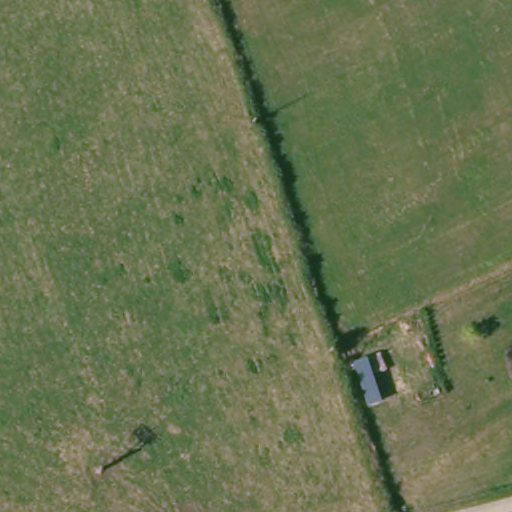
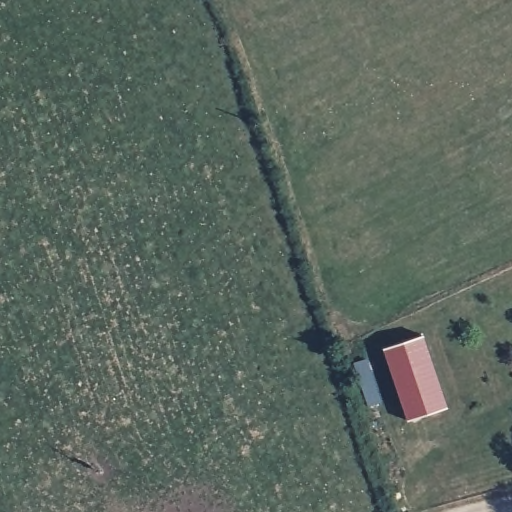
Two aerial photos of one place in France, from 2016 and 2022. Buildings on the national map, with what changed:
new [(442,415),(400,431),(379,355),(417,341),(442,415)]

